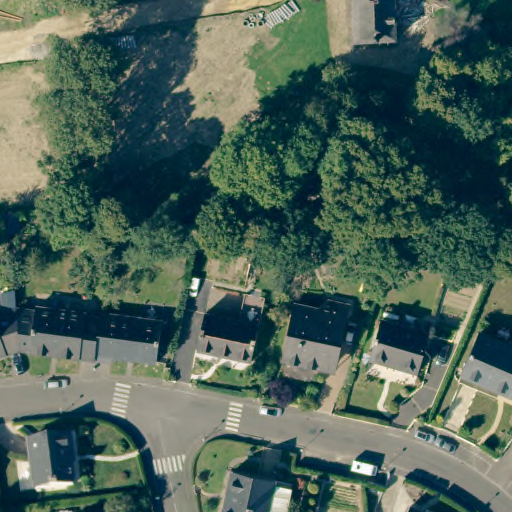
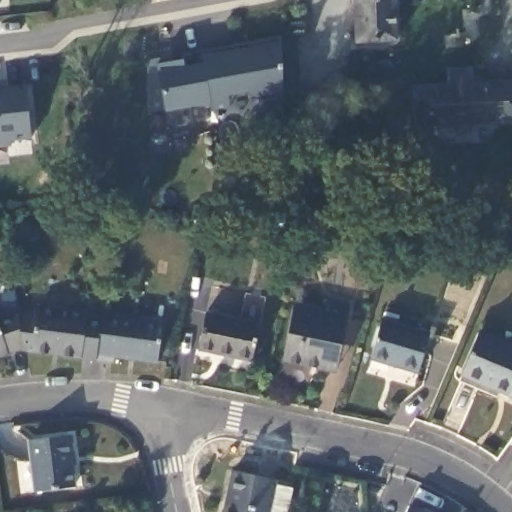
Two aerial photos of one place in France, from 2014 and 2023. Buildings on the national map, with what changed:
unchanged [(398,39),(358,41),(357,0),(397,0),(398,39)]
new [(283,108),(270,109),(252,93),(207,99),(202,64),(201,57),(280,42),(283,108)]
new [(149,60),(200,53),(201,57),(202,64),(208,104),(190,107),(194,127),(169,132),(164,111),(144,114),(149,60)]
new [(411,84),(446,84),(446,67),(473,67),(473,80),(512,79),(512,122),(412,125),(411,84)]
new [(31,139),(10,141),(10,146),(0,147),(0,91),(25,88),(31,139)]
unchanged [(327,370),(283,361),(295,305),(319,310),(327,301),(349,305),(348,314),(340,349),(336,372),(327,370)]
unchanged [(21,350),(16,309),(37,310),(37,306),(87,311),(87,314),(101,316),(95,360),(21,350)]
unchanged [(0,357),(0,313),(16,309),(21,350),(0,357)]
unchanged [(95,360),(101,316),(101,314),(162,322),(157,363),(113,357),(112,362),(95,360)]
unchanged [(253,360),(200,349),(207,314),(260,324),(253,360)]
unchanged [(430,333),(418,372),(371,357),(382,320),(430,333)]
unchanged [(479,333),(512,347),(512,396),(462,374),(479,333)]
unchanged [(36,491),(29,441),(72,434),(74,452),(76,464),(71,464),(75,487),(36,491)]
unchanged [(291,487),(286,512),(224,512),(234,471),(274,479),(273,484),(291,487)]
unchanged [(422,512),(408,512),(411,506),(422,512)]

